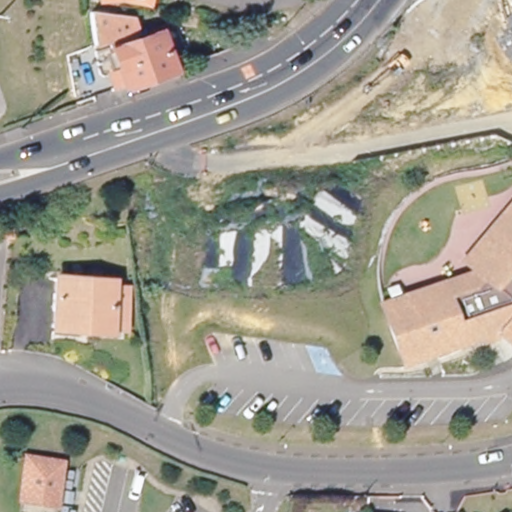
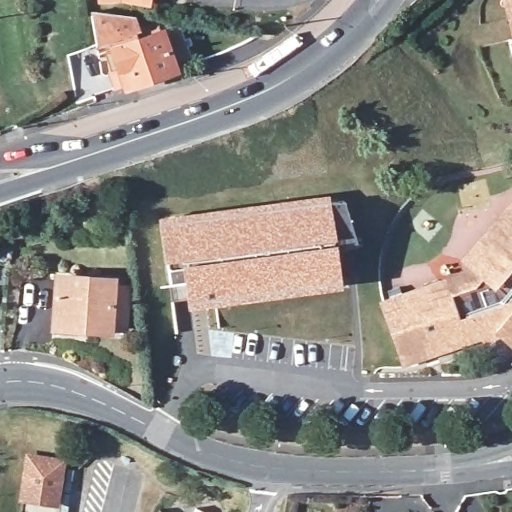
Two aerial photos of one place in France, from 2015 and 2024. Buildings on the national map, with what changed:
unchanged [(140,4),(111,0),(96,1),(96,0),(140,0),(140,4)]
unchanged [(512,49),(500,0),(512,0),(512,49)]
unchanged [(139,29),(142,37),(155,34),(165,38),(179,80),(130,97),(130,94),(120,97),(115,84),(125,81),(116,52),(100,57),(96,23),(139,29)]
unchanged [(237,38),(201,33),(202,25),(203,23),(240,28),(239,31),(237,38)]
new [(328,193),(329,201),(345,198),(355,241),(340,243),(341,248),(333,248),(340,288),(187,309),(181,264),(163,266),(157,217),(328,193)]
unchanged [(506,340),(493,330),(481,334),(483,340),(405,367),(386,314),(427,299),(477,276),(469,269),(512,218),(512,350),(504,343),(506,340)]
unchanged [(13,236),(0,236),(0,224),(11,223),(13,236)]
unchanged [(55,278),(109,282),(105,329),(51,325),(55,278)]
unchanged [(122,283),(119,339),(50,332),(51,325),(105,329),(109,282),(122,283)]
unchanged [(24,502),(25,495),(30,462),(61,467),(55,499),(54,507),(24,502)]

